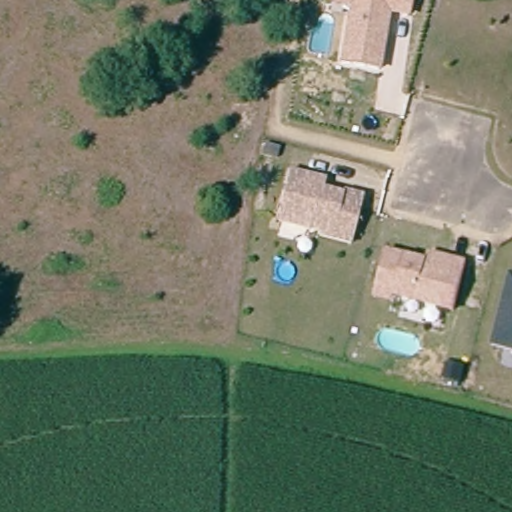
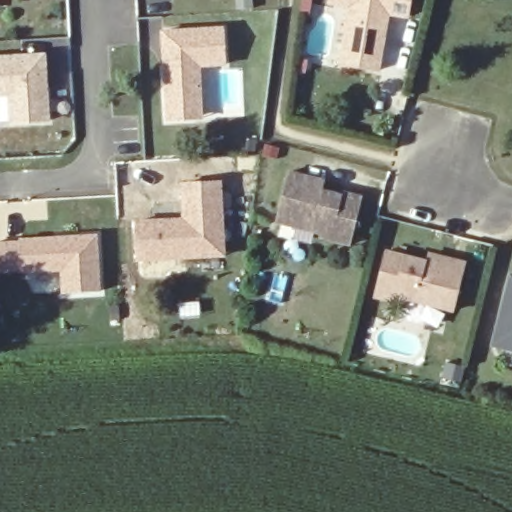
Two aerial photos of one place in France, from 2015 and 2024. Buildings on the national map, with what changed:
unchanged [(348,12),(350,4),(329,0),(410,0),(407,15),(388,12),(387,20),(380,68),(340,62),(348,12)]
new [(200,67),(203,119),(165,121),(161,31),(223,26),(225,66),(200,67)]
new [(10,96),(0,96),(0,56),(45,54),(49,122),(9,121),(10,96)]
unchanged [(343,191),(363,196),(351,242),(320,235),(321,230),(277,220),(289,170),(307,175),(324,180),(322,189),(343,194),(343,191)]
new [(221,180),(226,257),(137,262),(134,221),(180,219),(178,182),(221,180)]
new [(60,272),(0,274),(0,243),(18,241),(18,237),(96,234),(101,294),(61,293),(60,272)]
unchanged [(376,289),(385,249),(427,260),(429,251),(449,256),(466,261),(454,309),(395,294),(394,298),(375,293),(376,289)]
unchanged [(512,272),(512,348),(493,343),(511,272),(512,272)]

